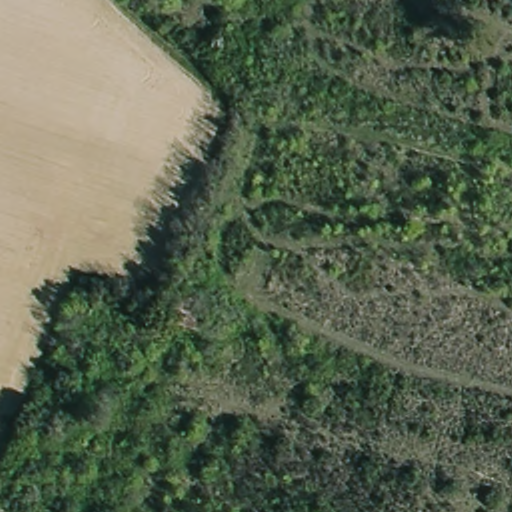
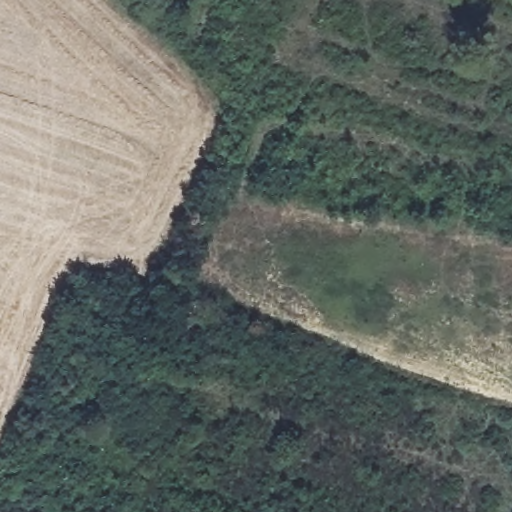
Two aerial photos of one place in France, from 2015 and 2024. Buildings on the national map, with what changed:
unchanged [(178,299),(221,317),(214,334),(199,329),(196,337),(168,326),(178,299)]

